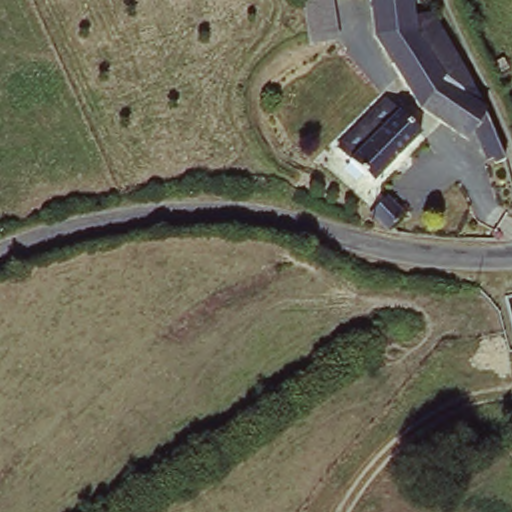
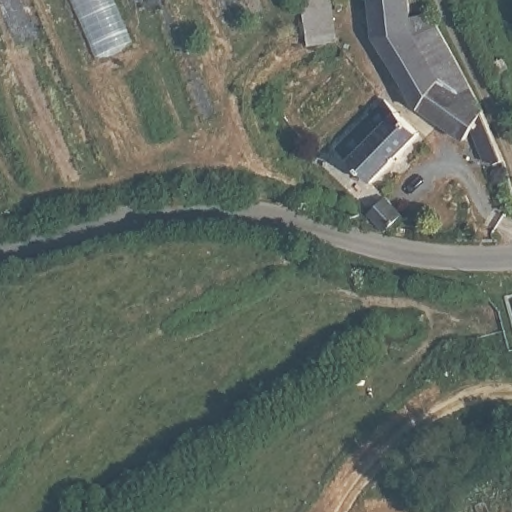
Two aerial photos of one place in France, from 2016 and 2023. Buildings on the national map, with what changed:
new [(131,41),(96,57),(71,0),(113,0),(131,41)]
unchanged [(312,39),(304,0),(328,0),(337,35),(330,36),(312,39)]
unchanged [(407,20),(431,19),(472,91),(500,162),(486,161),(475,129),(467,138),(420,109),(375,34),(370,0),(407,0),(407,20)]
unchanged [(361,132),(391,104),(423,135),(375,183),(341,151),(361,132)]

